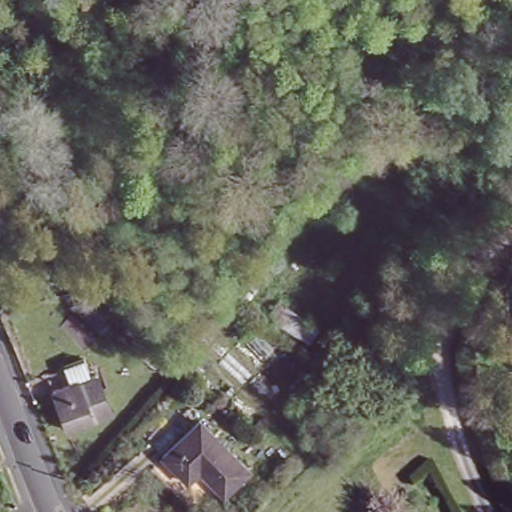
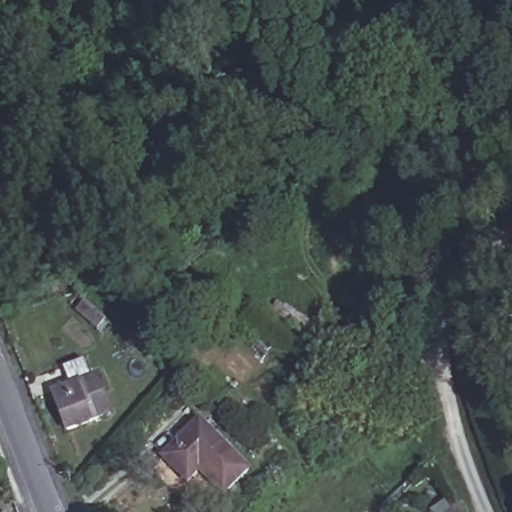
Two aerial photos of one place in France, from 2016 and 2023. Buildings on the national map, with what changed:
unchanged [(50,287),(58,278),(76,293),(80,296),(72,305),(62,297),(50,287)]
unchanged [(320,326),(309,344),(268,317),(279,300),(320,326)]
unchanged [(53,392),(78,383),(73,367),(94,360),(100,376),(105,374),(120,411),(67,431),(53,392)]
unchanged [(209,470),(207,468),(195,480),(168,451),(207,416),(235,445),(209,470)]
unchanged [(228,491),(209,470),(235,445),(254,466),(228,491)]

